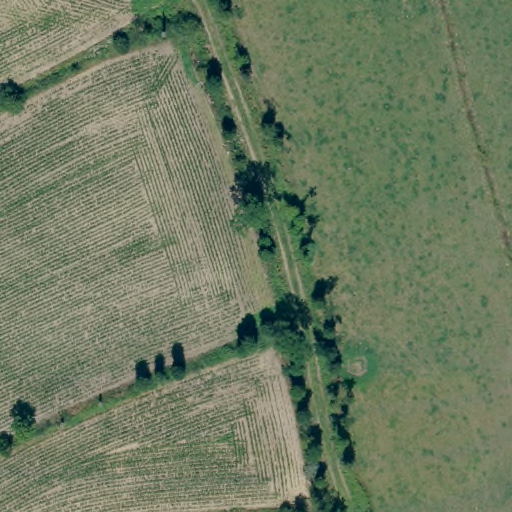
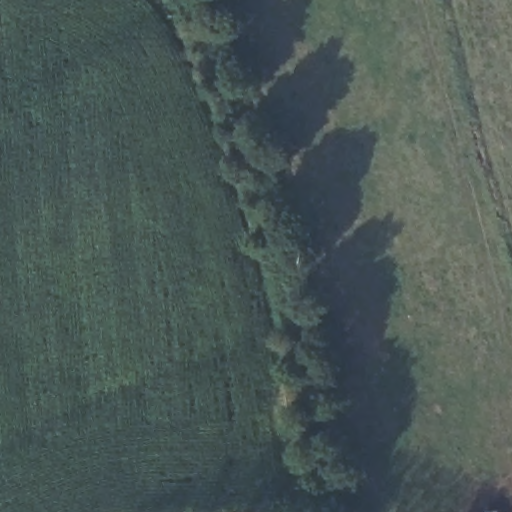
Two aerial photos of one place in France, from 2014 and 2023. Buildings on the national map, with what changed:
[]

